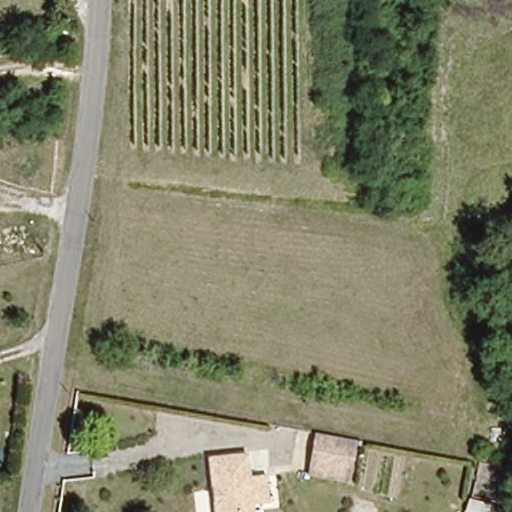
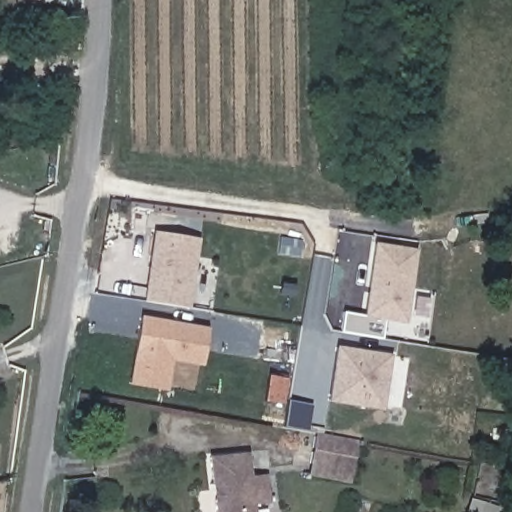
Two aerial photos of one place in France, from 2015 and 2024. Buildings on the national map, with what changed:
new [(201,240),(191,309),(145,302),(156,235),(201,240)]
new [(420,252),(410,326),(387,322),(383,338),(344,333),(345,313),(367,316),(375,245),(420,252)]
new [(211,328),(206,367),(175,363),(170,394),(132,387),(142,318),(211,328)]
new [(392,356),(385,411),(332,403),(338,348),(392,356)]
unchanged [(352,442),(345,482),(305,476),(313,436),(352,442)]
unchanged [(248,506),(249,512),(214,512),(206,460),(241,453),(245,477),(263,475),(267,502),(248,506)]

